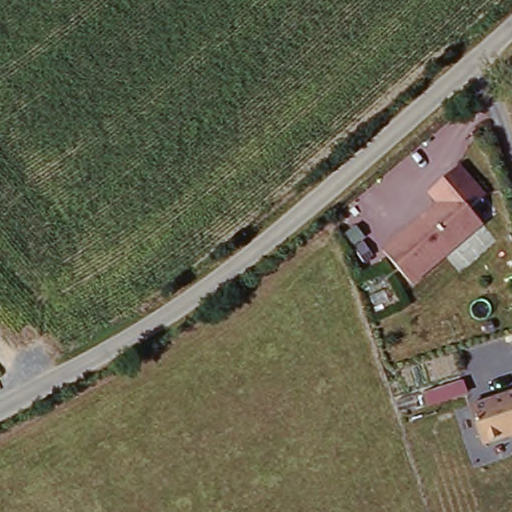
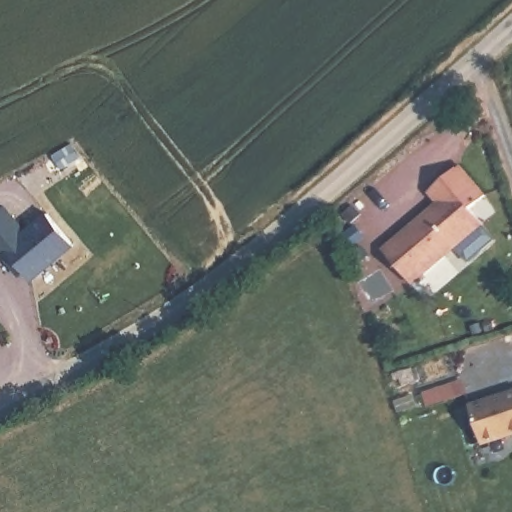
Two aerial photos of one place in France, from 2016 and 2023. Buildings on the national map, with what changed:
unchanged [(489,193),(471,209),(484,223),(414,282),(381,249),(432,202),(425,194),(460,165),(489,193)]
new [(2,251),(0,248),(0,210),(7,204),(27,229),(49,212),(75,244),(33,279),(26,270),(21,274),(2,251)]
new [(463,379),(467,391),(458,394),(429,404),(425,392),(454,382),(463,379)]
unchanged [(467,407),(512,391),(512,434),(482,444),(467,407)]

